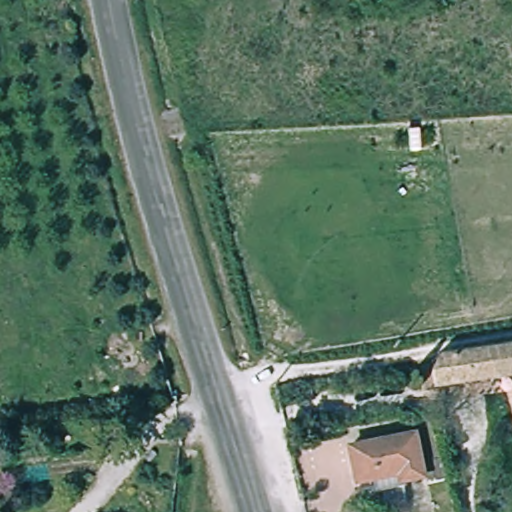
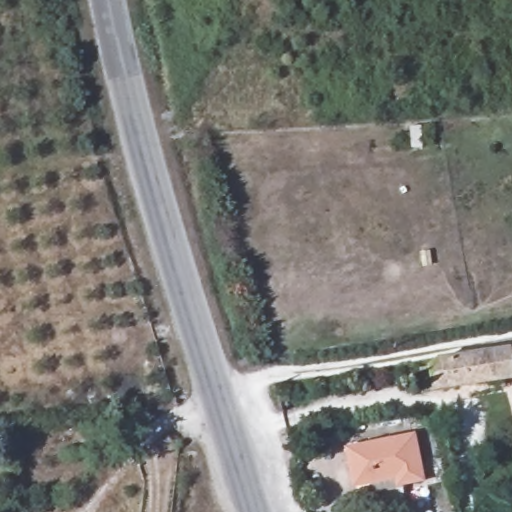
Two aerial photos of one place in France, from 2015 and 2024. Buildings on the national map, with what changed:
unchanged [(456,391),(453,368),(464,367),(469,355),(512,350),(512,384),(456,391)]
unchanged [(413,482),(394,486),(394,490),(364,494),(363,485),(344,486),(340,448),(406,439),(413,482)]
unchanged [(415,472),(414,463),(418,462),(415,442),(431,439),(439,468),(415,472)]

